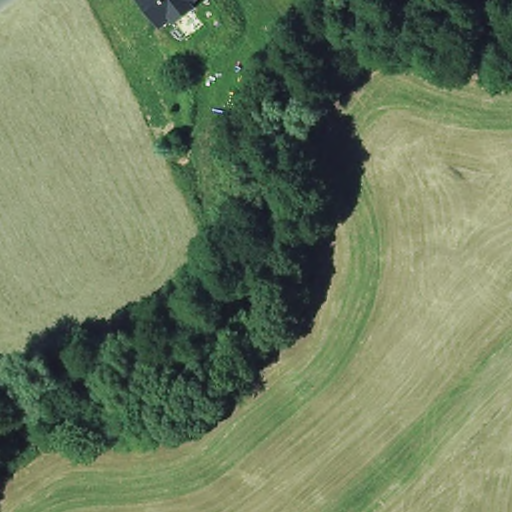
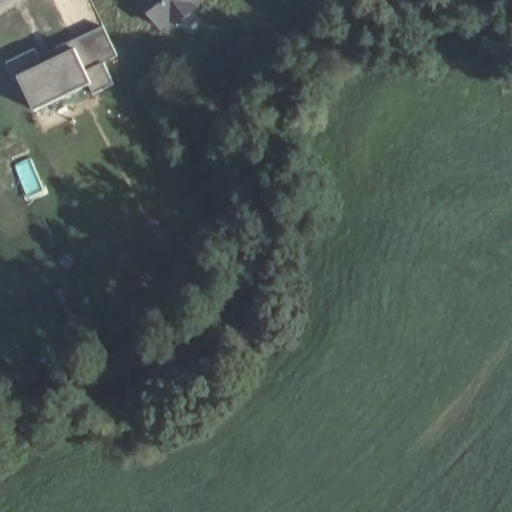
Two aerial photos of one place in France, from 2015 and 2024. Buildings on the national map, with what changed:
unchanged [(197,9),(176,25),(173,21),(164,28),(140,0),(200,0),(194,5),(197,9)]
new [(41,66),(74,52),(71,46),(104,28),(118,58),(103,65),(113,85),(95,95),(91,87),(90,85),(34,112),(8,63),(35,51),(41,66)]

